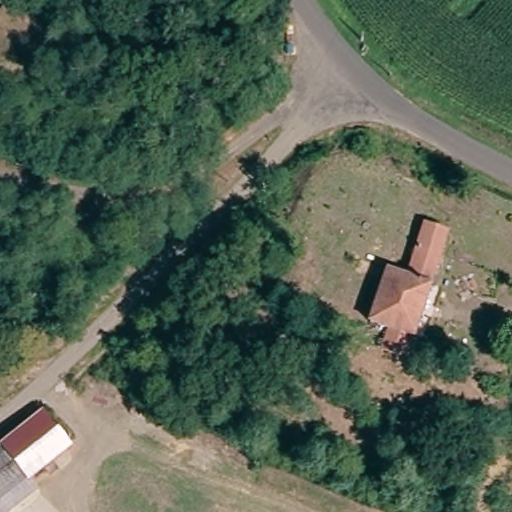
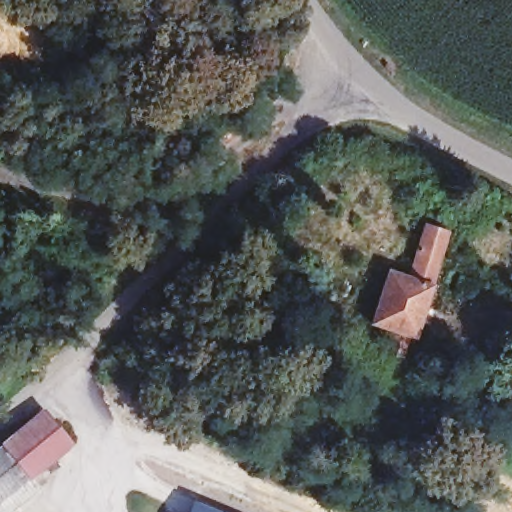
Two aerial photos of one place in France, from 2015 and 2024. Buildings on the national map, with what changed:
unchanged [(29,235),(12,281),(0,276),(0,222),(29,235)]
unchanged [(409,338),(398,333),(391,358),(372,350),(381,328),(364,321),(379,277),(403,286),(425,226),(447,235),(436,268),(409,338)]
unchanged [(43,405),(69,440),(25,479),(0,446),(0,440),(43,405)]
unchanged [(25,479),(0,501),(0,446),(25,479)]
new [(194,500),(223,512),(189,512),(194,500)]
unchanged [(4,512),(0,512),(0,509),(4,512)]

